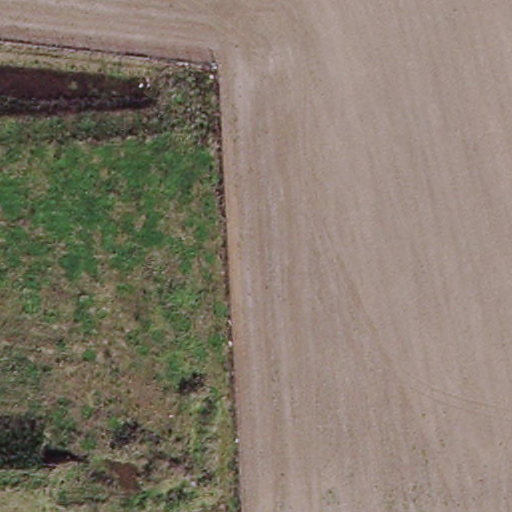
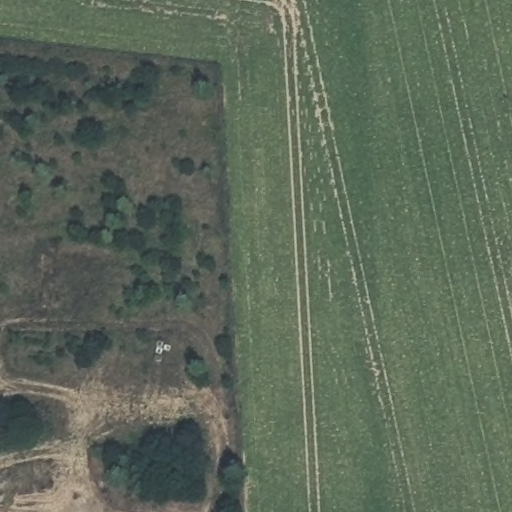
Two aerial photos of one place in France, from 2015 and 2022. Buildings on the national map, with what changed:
[]

